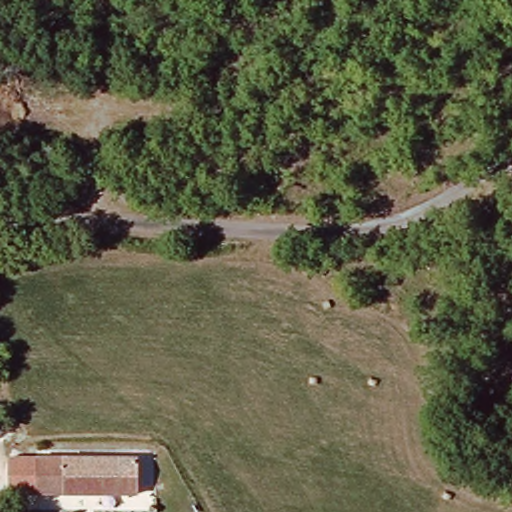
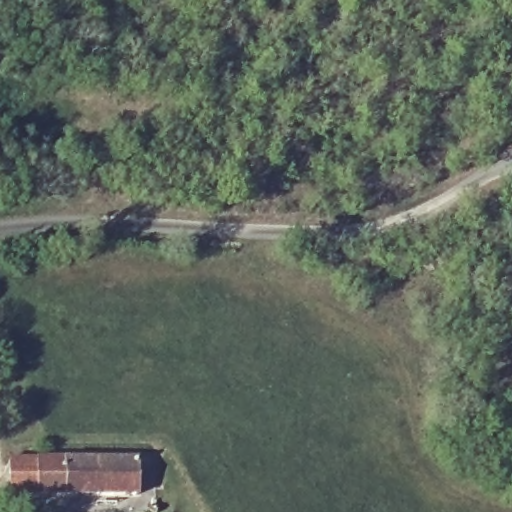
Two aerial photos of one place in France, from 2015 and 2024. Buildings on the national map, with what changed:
unchanged [(40,497),(39,458),(135,458),(135,497),(40,497)]

